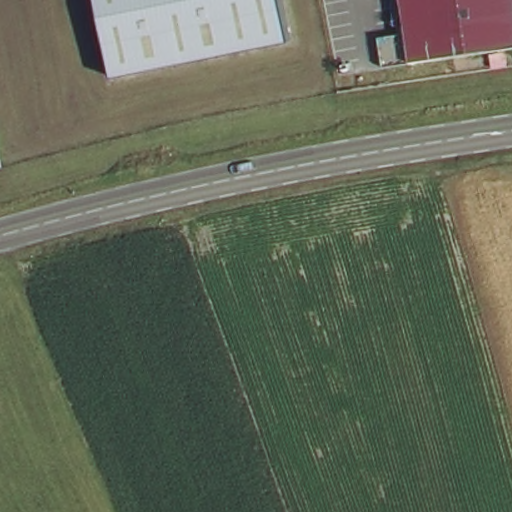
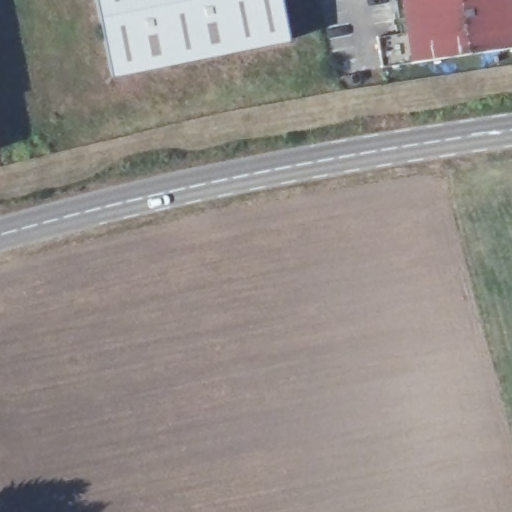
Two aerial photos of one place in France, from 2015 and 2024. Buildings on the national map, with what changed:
unchanged [(98,0),(280,0),(289,42),(115,76),(98,0)]
unchanged [(383,66),(378,37),(403,32),(398,0),(512,0),(512,46),(383,66)]

